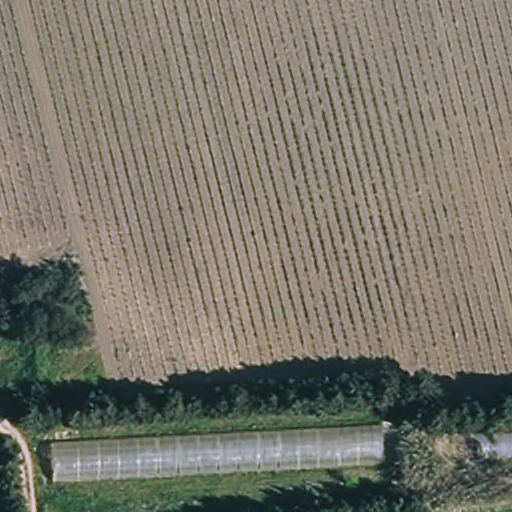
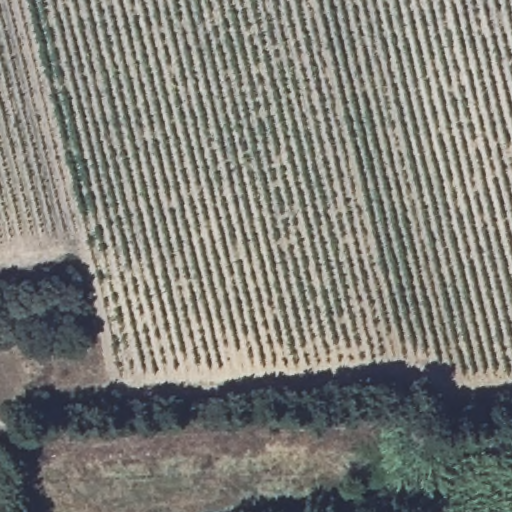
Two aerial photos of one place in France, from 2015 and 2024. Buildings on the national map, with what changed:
demolished [(51,482),(50,443),(381,425),(381,461),(51,482)]
unchanged [(455,463),(454,432),(512,430),(512,461),(455,463)]

